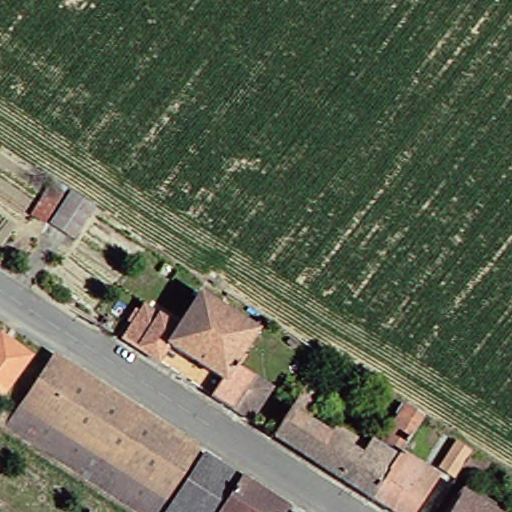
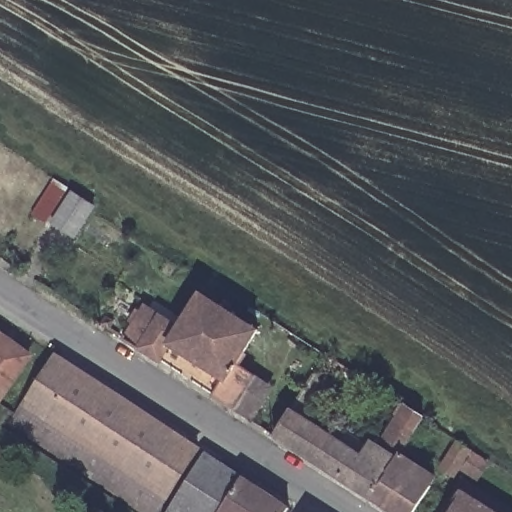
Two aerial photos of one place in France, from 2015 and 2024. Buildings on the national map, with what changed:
unchanged [(60,189),(38,224),(24,215),(47,175),(60,189)]
unchanged [(89,206),(69,241),(46,227),(65,190),(89,206)]
unchanged [(139,303),(174,325),(195,293),(253,330),(238,357),(244,362),(241,368),(268,386),(247,420),(205,395),(214,378),(165,345),(154,361),(118,337),(139,303)]
unchanged [(98,323),(90,318),(97,310),(104,314),(98,323)]
unchanged [(0,388),(0,352),(16,364),(0,388)]
unchanged [(185,448),(146,512),(131,512),(1,423),(44,356),(185,448)]
unchanged [(324,393),(307,422),(327,437),(333,429),(365,448),(367,446),(373,450),(401,406),(417,416),(393,452),(363,495),(269,435),(306,380),(324,393)]
unchanged [(458,450),(473,460),(466,472),(450,462),(458,450)]
unchanged [(428,475),(405,512),(387,512),(363,495),(393,452),(428,475)]
unchanged [(278,508),(275,512),(157,512),(194,453),(278,508)]
unchanged [(488,512),(442,512),(456,491),(488,512)]

